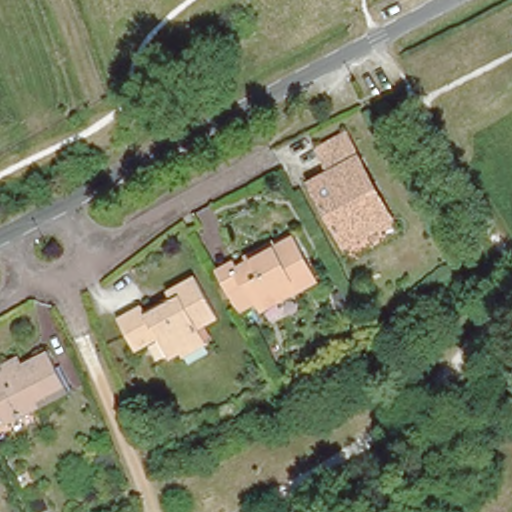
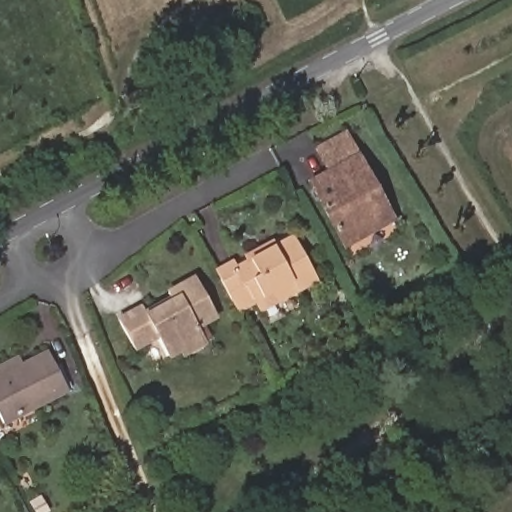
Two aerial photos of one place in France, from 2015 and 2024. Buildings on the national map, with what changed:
unchanged [(306,182),(327,171),(315,149),(343,132),(355,155),(391,218),(381,224),(340,246),(306,182)]
unchanged [(250,285),(246,287),(255,302),(243,310),(222,270),(239,260),(242,265),(297,235),(321,277),(302,289),(265,310),(250,285)]
unchanged [(186,365),(180,355),(170,361),(159,342),(137,354),(120,322),(143,310),(147,318),(172,303),(170,297),(196,283),(219,322),(199,333),(205,342),(210,351),(186,365)]
unchanged [(20,362),(23,369),(48,355),(69,395),(6,427),(0,415),(0,373),(1,372),(20,362)]

